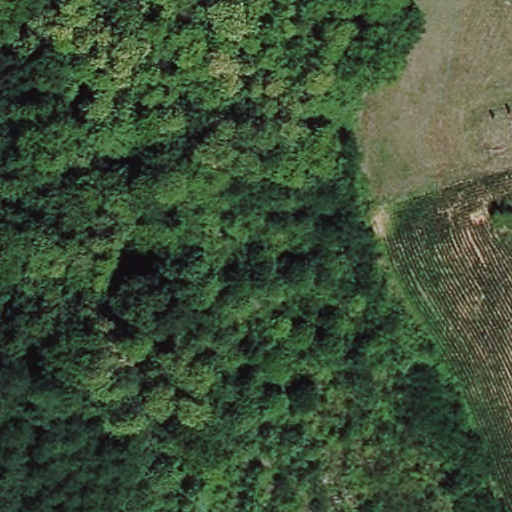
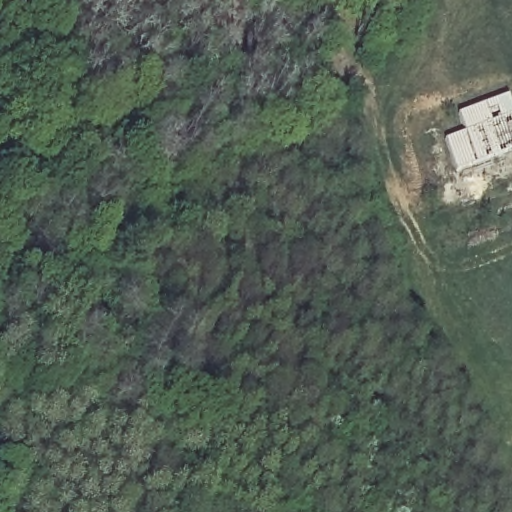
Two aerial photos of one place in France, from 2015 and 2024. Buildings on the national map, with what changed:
new [(512,100),(512,149),(458,170),(448,137),(468,130),(460,112),(509,94),(512,100)]

